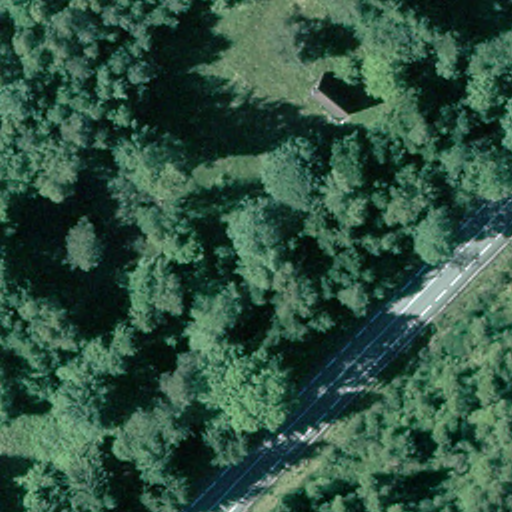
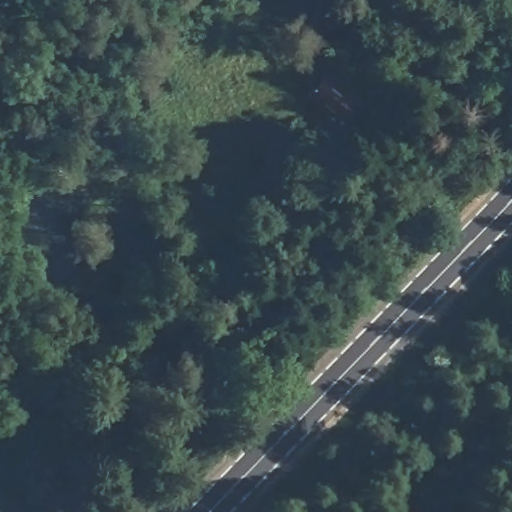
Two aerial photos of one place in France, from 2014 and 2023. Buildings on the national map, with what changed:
unchanged [(405,68),(427,44),(428,46),(433,50),(438,46),(452,58),(427,87),(407,70),(405,68)]
unchanged [(353,103),(340,120),(308,94),(322,77),(353,103)]

